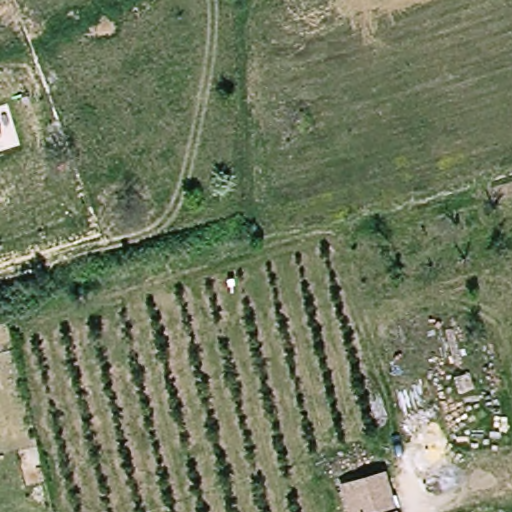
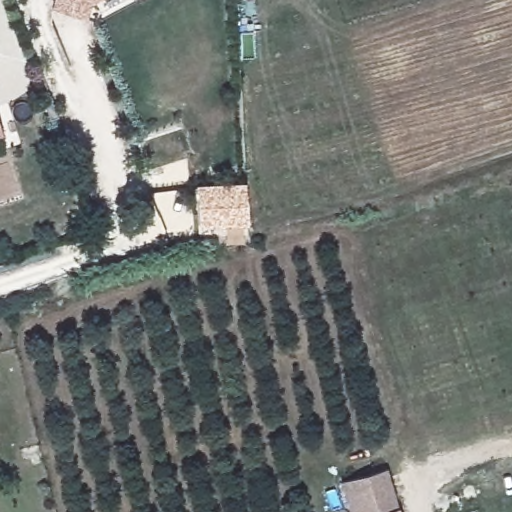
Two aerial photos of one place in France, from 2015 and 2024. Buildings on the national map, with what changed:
new [(50,0),(93,0),(83,5),(78,21),(46,11),(50,0)]
unchanged [(0,135),(0,130),(1,135),(0,135)]
new [(197,224),(194,183),(244,181),(246,223),(197,224)]
unchanged [(390,470),(402,512),(350,512),(343,484),(390,470)]

